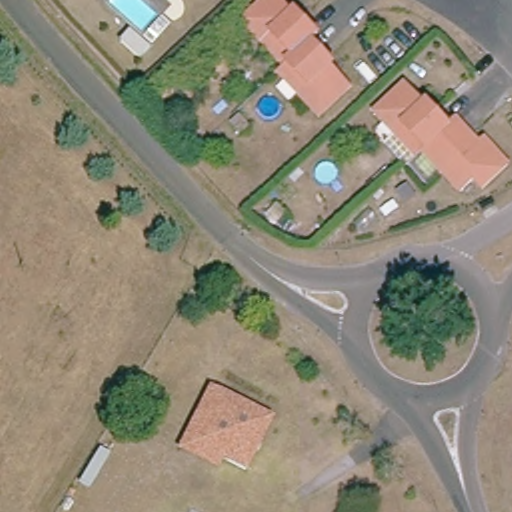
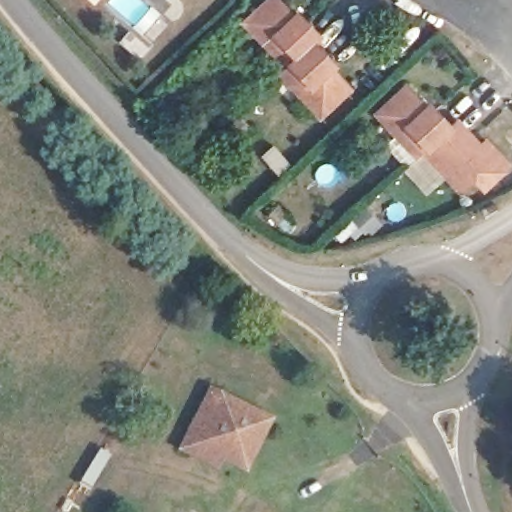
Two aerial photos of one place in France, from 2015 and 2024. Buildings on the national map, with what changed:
unchanged [(86,1),(85,0),(87,0),(86,1)]
unchanged [(288,14),(292,12),(312,34),(306,40),(326,62),(323,65),(343,87),(312,115),(272,71),(272,70),(277,65),(237,21),(259,0),(274,0),(288,14)]
unchanged [(420,110),(423,106),(441,126),(444,129),(450,123),(467,141),(473,148),(478,142),(502,168),(476,192),(467,182),(466,183),(453,195),(440,180),(416,155),(410,160),(369,116),(400,87),(420,110)]
unchanged [(186,459),(190,451),(175,444),(182,432),(195,437),(215,396),(264,419),(241,469),(204,451),(196,465),(186,459)]

